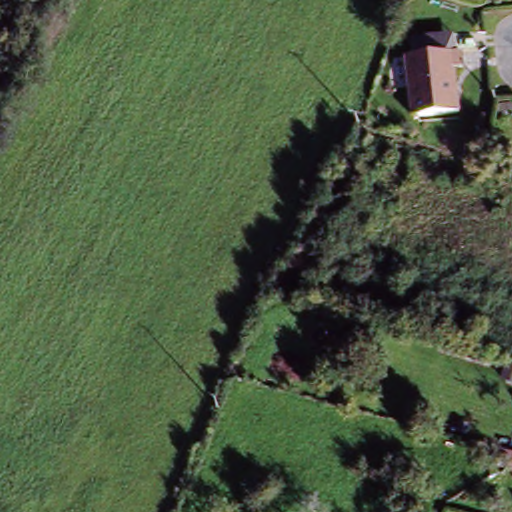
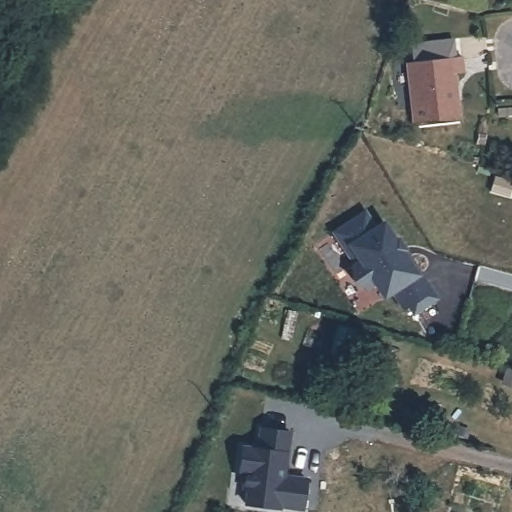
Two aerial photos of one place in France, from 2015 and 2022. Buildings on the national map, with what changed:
unchanged [(407,63),(415,61),(412,44),(455,38),(459,55),(465,54),(469,71),(453,74),(459,100),(465,99),(468,116),(419,124),(407,63)]
new [(382,299),(375,285),(368,290),(353,282),(350,264),(352,263),(331,232),(366,209),(377,224),(384,219),(395,237),(397,235),(407,249),(439,299),(414,316),(409,306),(401,311),(392,294),(382,299)]
unchanged [(509,365),(512,366),(512,378),(505,376),(509,365)]
demolished [(507,414),(510,403),(512,403),(512,415),(507,414)]
new [(304,509),(281,508),(280,510),(244,504),(247,485),(241,484),(244,472),(237,472),(241,444),(257,446),(259,427),(292,430),(286,474),(308,476),(304,509)]

